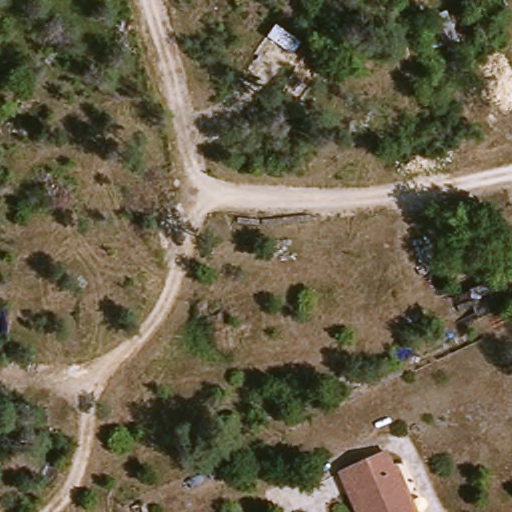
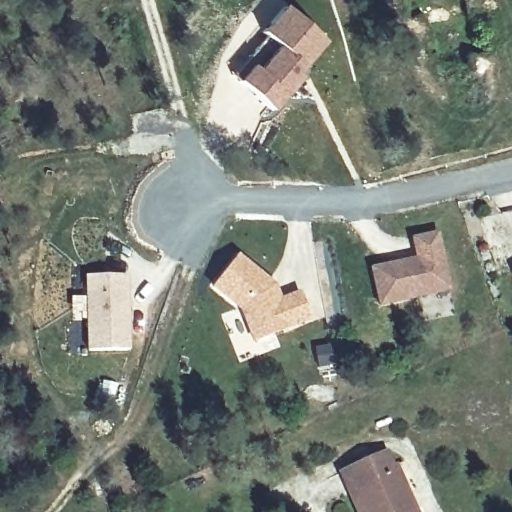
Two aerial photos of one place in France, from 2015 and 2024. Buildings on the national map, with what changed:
new [(253,67),(259,71),(280,47),(263,34),(284,7),(321,39),(293,70),(301,77),(274,111),(240,82),(253,67)]
new [(419,260),(414,240),(439,235),(442,249),(452,290),(381,306),(373,270),(411,262),(419,260)]
new [(268,281),(276,285),(278,294),(280,301),(301,292),(311,317),(254,340),(242,310),(213,287),(237,256),(268,281)]
new [(86,276),(129,275),(131,348),(88,350),(86,276)]
unchanged [(343,472),(390,458),(411,512),(359,512),(343,472)]

